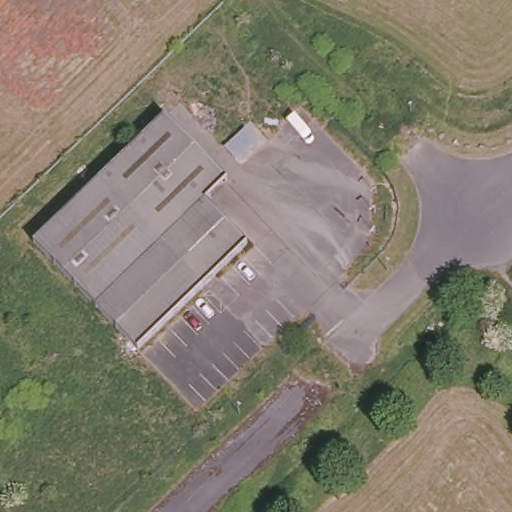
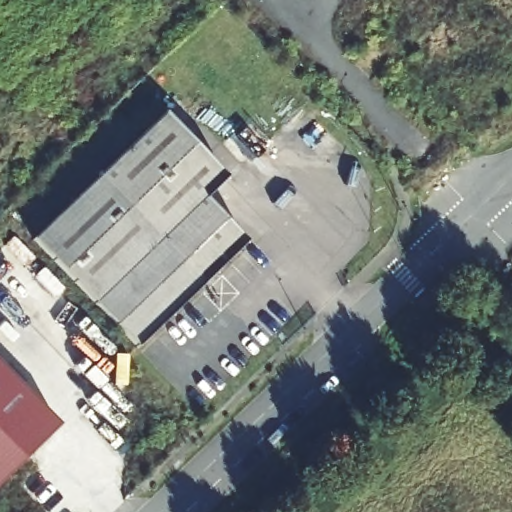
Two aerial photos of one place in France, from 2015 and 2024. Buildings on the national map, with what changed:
unchanged [(165,114),(228,179),(207,200),(247,241),(203,284),(100,177),(165,114)]
unchanged [(100,177),(203,284),(136,343),(35,239),(100,177)]
new [(0,483),(0,363),(60,423),(0,483)]

